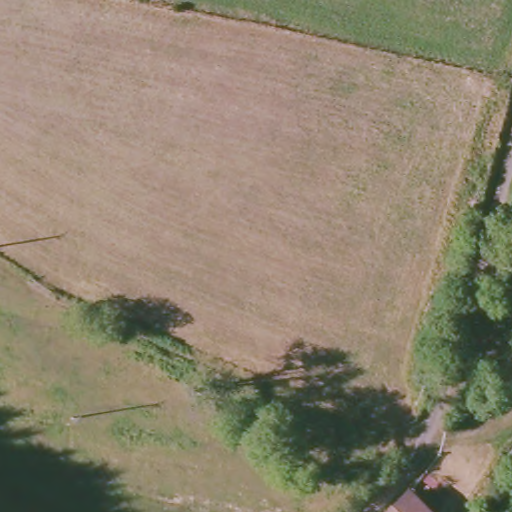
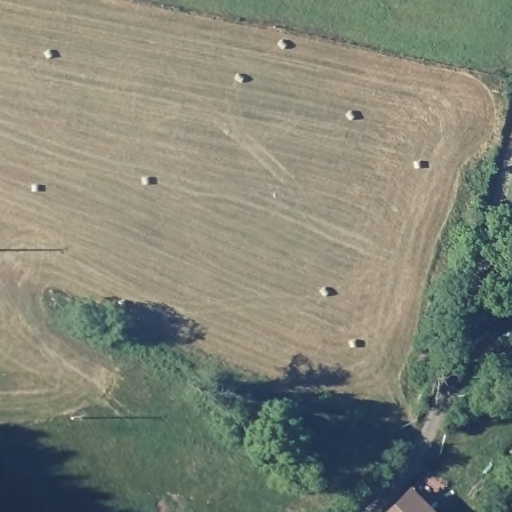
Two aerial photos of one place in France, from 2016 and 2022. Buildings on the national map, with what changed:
unchanged [(509,350),(486,369),(475,355),(498,336),(509,350)]
unchanged [(406,495),(422,512),(386,512),(406,495)]

